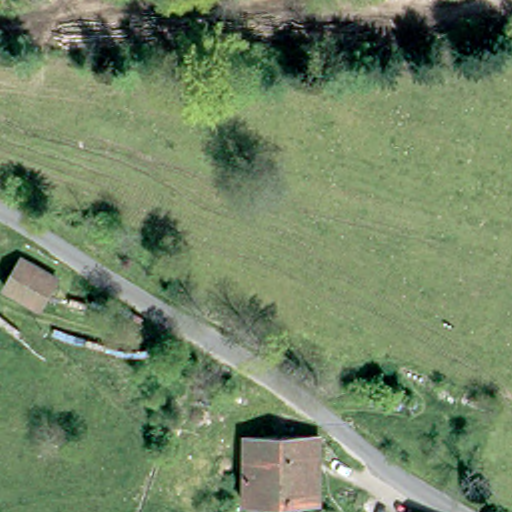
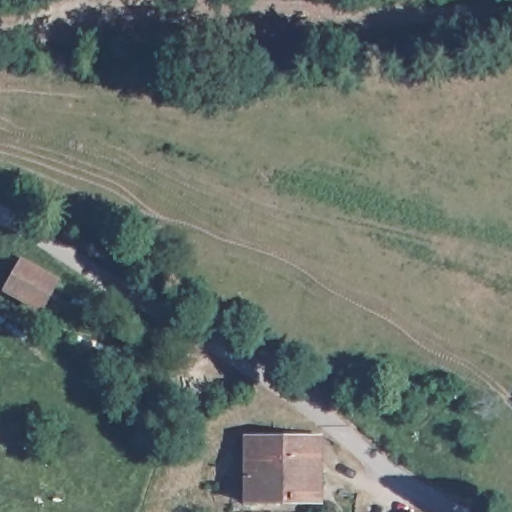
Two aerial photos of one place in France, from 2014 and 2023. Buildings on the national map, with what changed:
unchanged [(57,281),(40,312),(9,298),(4,295),(0,295),(0,292),(17,260),(57,281)]
unchanged [(245,430),(270,431),(320,433),(320,506),(245,503),(245,430)]

